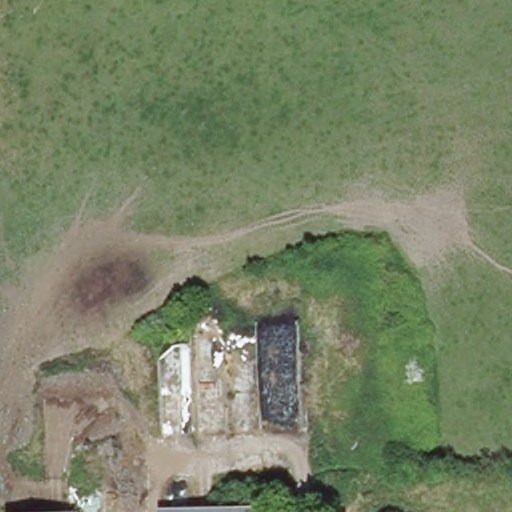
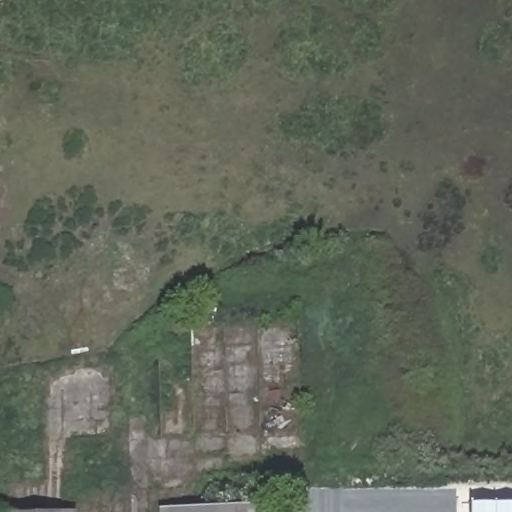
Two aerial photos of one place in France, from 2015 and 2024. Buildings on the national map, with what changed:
new [(471,502),(512,503),(512,512),(471,512),(471,502)]
unchanged [(270,503),(270,512),(162,512),(162,508),(270,503)]

